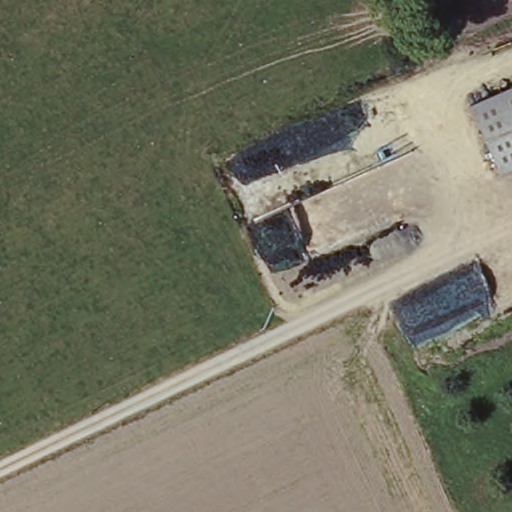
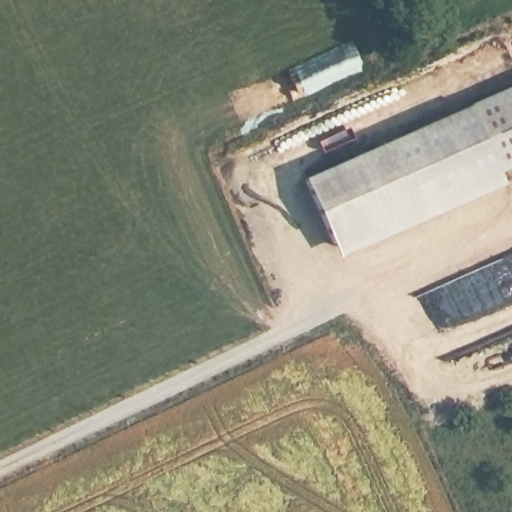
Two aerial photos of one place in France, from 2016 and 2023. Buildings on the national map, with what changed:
unchanged [(512,88),(512,166),(498,173),(469,108),(512,88)]
new [(498,173),(503,186),(340,257),(307,178),(469,108),(498,173)]

